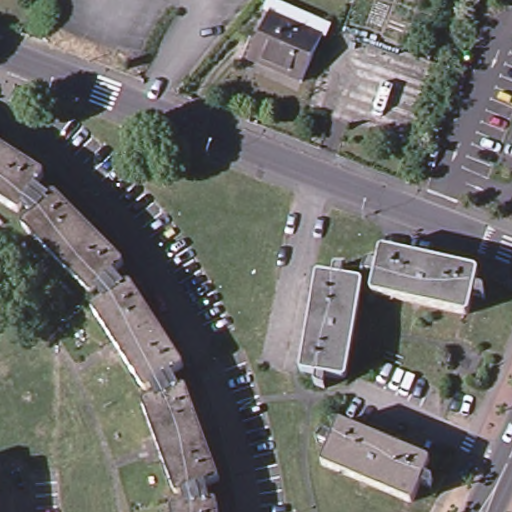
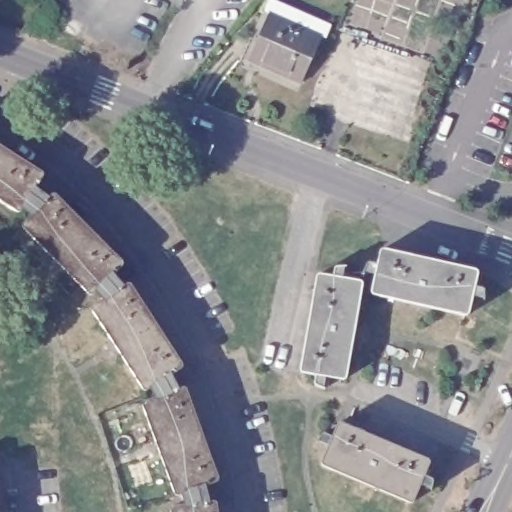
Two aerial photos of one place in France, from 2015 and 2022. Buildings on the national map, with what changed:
unchanged [(322,33),(302,80),(248,56),(269,10),(322,33)]
unchanged [(20,203),(15,210),(0,200),(0,145),(40,170),(32,185),(46,197),(52,191),(122,262),(111,274),(122,287),(129,282),(180,366),(169,374),(177,389),(182,388),(217,480),(204,485),(208,502),(213,501),(215,512),(168,512),(167,509),(185,506),(182,493),(173,496),(139,404),(155,397),(150,386),(142,391),(89,308),(102,299),(95,290),(90,295),(18,226),(31,213),(20,203)]
unchanged [(485,302),(474,299),(469,317),(372,295),(377,277),(367,274),(369,264),(380,265),(384,250),(480,273),(477,288),(487,291),(485,302)]
unchanged [(312,371),(296,368),(314,271),(329,274),(330,267),(332,263),(340,265),(337,276),(359,280),(340,376),(321,373),(319,383),(314,383),(310,378),(312,371)]
unchanged [(426,462),(420,477),(430,481),(424,492),(415,488),(407,503),(315,462),(322,445),(313,439),(317,432),(322,431),(327,434),(334,420),(426,462)]

